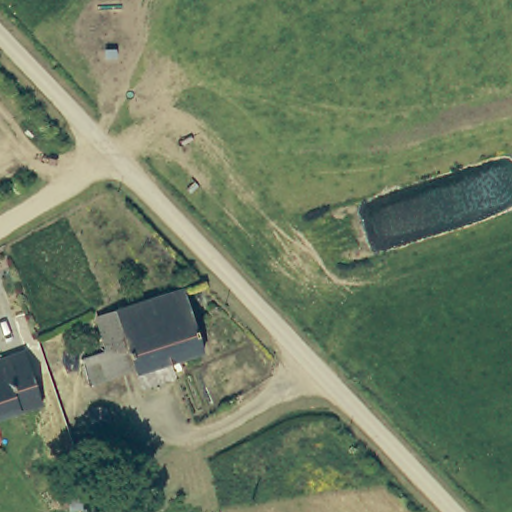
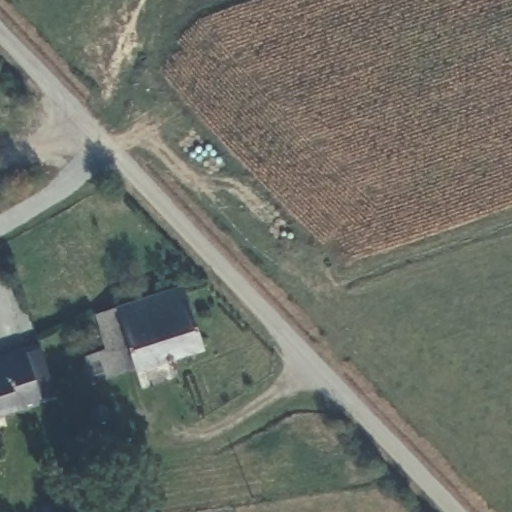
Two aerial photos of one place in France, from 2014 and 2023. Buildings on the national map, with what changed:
unchanged [(205,350),(141,371),(136,367),(93,381),(85,355),(110,347),(99,315),(185,288),(205,350)]
unchanged [(28,350),(46,404),(0,418),(0,359),(28,350)]
unchanged [(115,406),(118,415),(114,422),(107,423),(100,419),(98,410),(106,404),(115,406)]
unchanged [(75,472),(86,471),(91,471),(94,506),(79,507),(75,472)]

